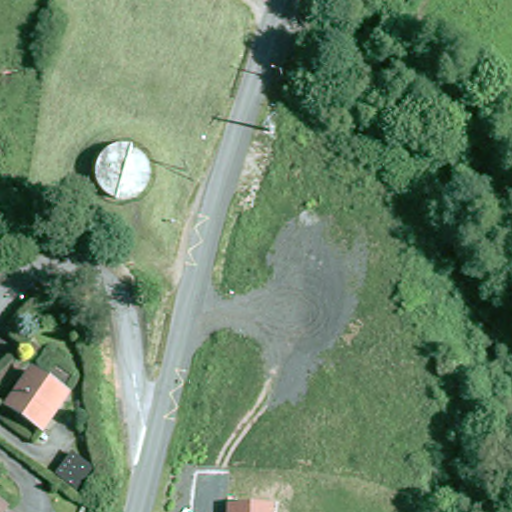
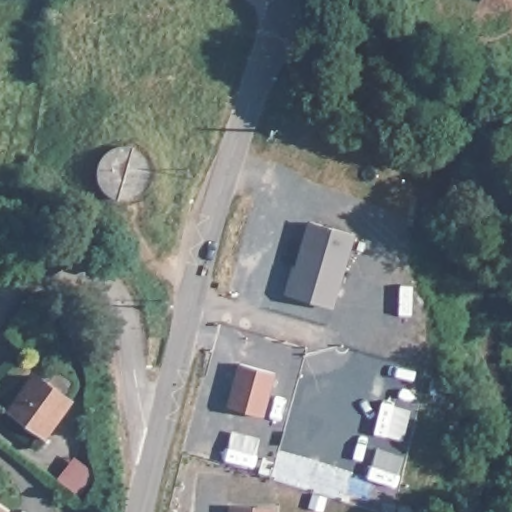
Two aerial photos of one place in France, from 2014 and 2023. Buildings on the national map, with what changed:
new [(296,265),(309,220),(356,234),(335,307),(286,293),(293,264),(296,265)]
new [(227,405),(239,363),(276,373),(264,415),(227,405)]
unchanged [(12,408),(34,380),(38,375),(72,402),(47,436),(12,408)]
unchanged [(84,475),(69,494),(50,477),(65,458),(84,475)]
unchanged [(0,512),(0,506),(9,512),(0,512)]
unchanged [(277,512),(229,512),(229,507),(277,508),(277,512)]

